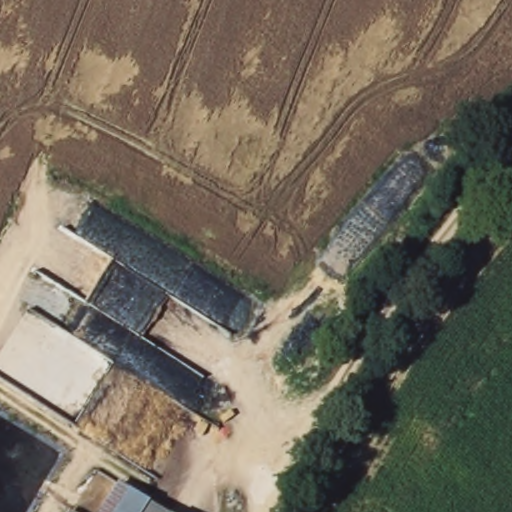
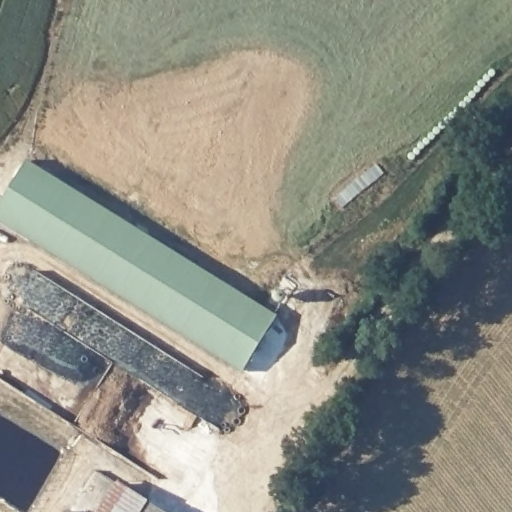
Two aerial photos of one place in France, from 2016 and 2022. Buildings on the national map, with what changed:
new [(0,223),(0,201),(26,159),(278,315),(242,372),(0,223)]
unchanged [(116,481),(164,512),(96,512),(116,481)]
unchanged [(75,512),(65,512),(68,508),(75,512)]

